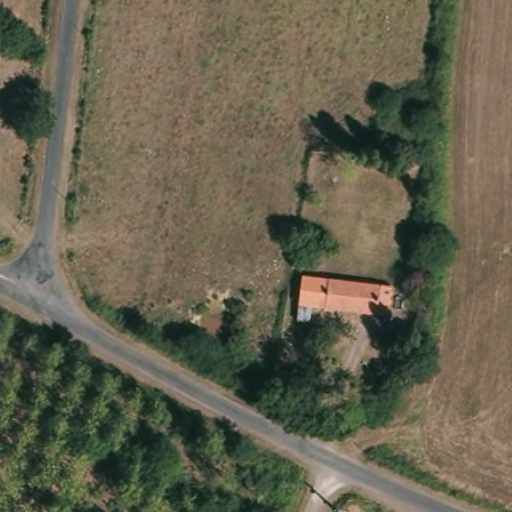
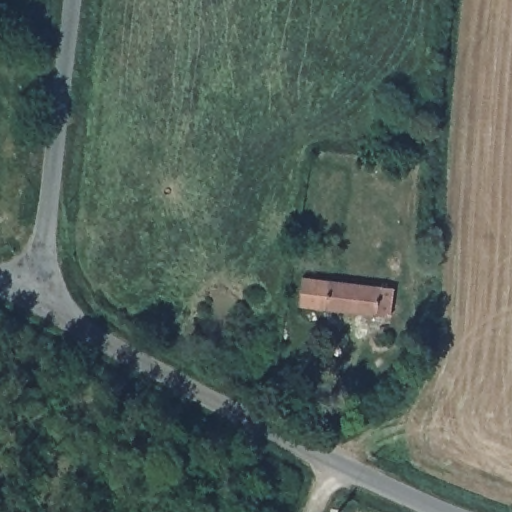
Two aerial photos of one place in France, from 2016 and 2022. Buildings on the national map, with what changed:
unchanged [(393,316),(299,299),(305,273),(397,288),(393,316)]

